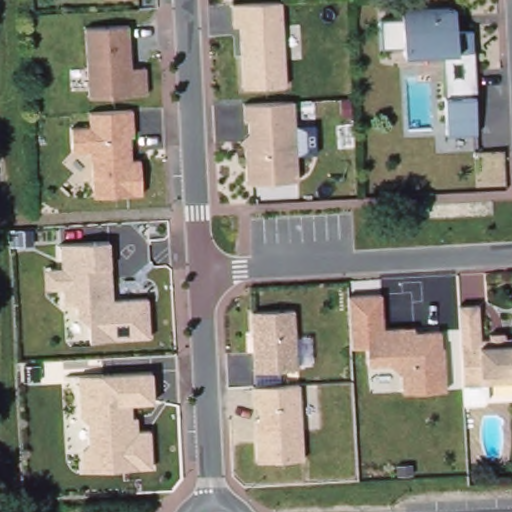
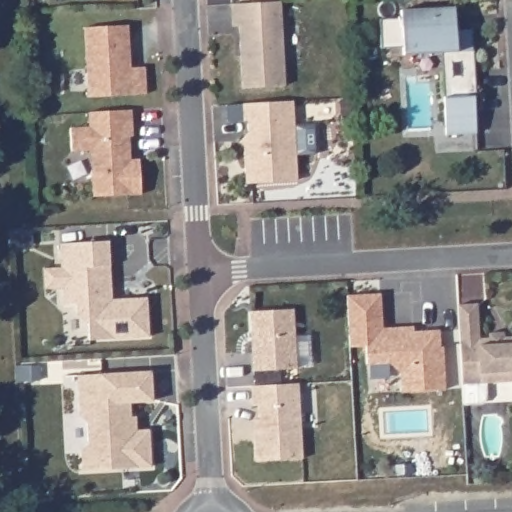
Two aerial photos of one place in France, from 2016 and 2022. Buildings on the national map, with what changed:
unchanged [(283,1),(287,88),(242,90),(239,29),(231,27),(230,4),(283,1)]
unchanged [(456,5),(458,48),(474,48),(481,136),(451,138),(446,85),(420,86),(417,53),(404,55),(403,49),(382,49),(381,20),(401,19),(401,9),(456,5)]
unchanged [(131,25),(132,66),(146,67),(147,95),(89,99),(85,25),(131,25)]
unchanged [(295,98),(298,183),(249,185),(244,101),(295,98)]
unchanged [(87,127),(87,110),(135,108),(136,139),(131,139),(132,158),(141,157),(142,194),(95,197),(92,152),(73,150),(71,127),(87,127)]
unchanged [(110,241),(114,296),(150,297),(154,336),(69,343),(60,242),(110,241)]
unchanged [(382,294),(383,327),(417,326),(417,332),(444,331),(449,388),(406,394),(403,369),(392,362),(367,361),(366,351),(350,352),(347,293),(382,294)]
unchanged [(477,303),(482,341),(512,339),(512,401),(496,401),(494,381),(487,381),(490,402),(462,402),(454,302),(477,303)]
unchanged [(295,310),(297,371),(253,372),(251,310),(295,310)]
unchanged [(82,469),(82,449),(87,446),(86,424),(79,417),(77,377),(152,373),(154,400),(127,402),(128,416),(136,417),(136,431),(147,431),(150,467),(82,469)]
unchanged [(299,381),(304,457),(257,460),(252,388),(299,381)]

